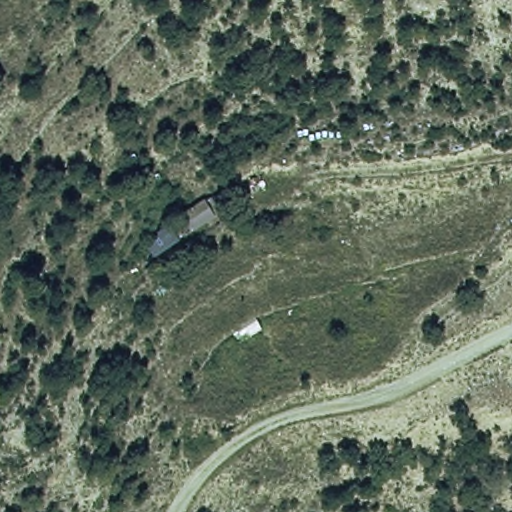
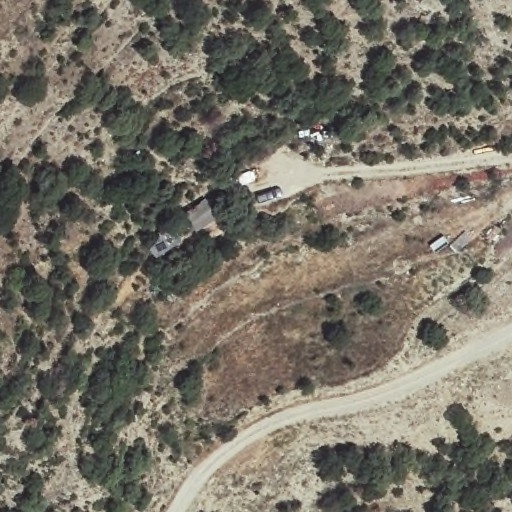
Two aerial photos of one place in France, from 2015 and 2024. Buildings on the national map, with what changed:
unchanged [(182,212),(205,197),(218,221),(197,233),(182,212)]

